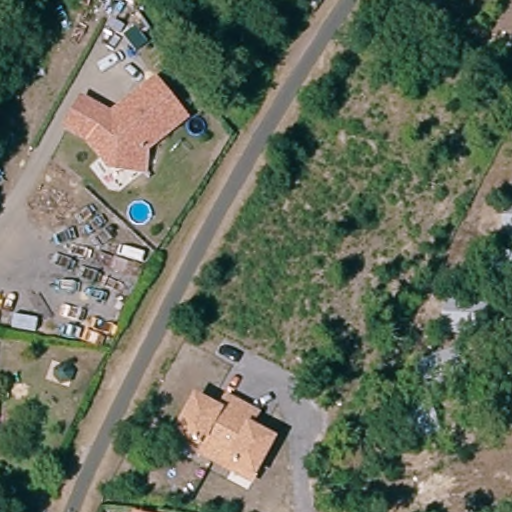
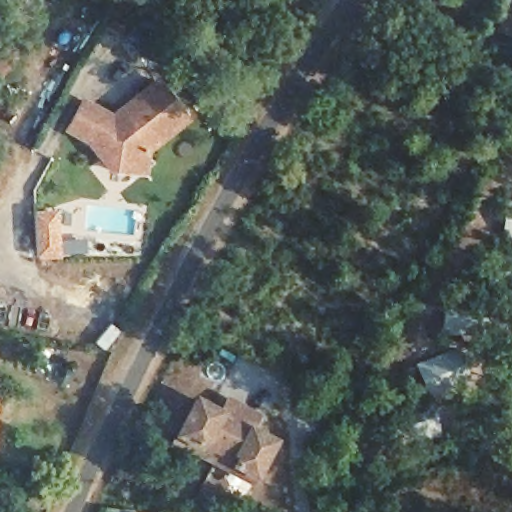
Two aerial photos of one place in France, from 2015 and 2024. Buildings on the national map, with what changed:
unchanged [(309,0),(311,0),(310,2),(309,0)]
unchanged [(512,43),(496,36),(509,4),(512,5),(512,43)]
unchanged [(118,165),(108,164),(82,128),(81,131),(65,122),(82,93),(111,110),(120,103),(157,76),(186,116),(144,146),(140,169),(118,165)]
unchanged [(507,208),(512,208),(512,232),(505,232),(507,208)]
new [(38,261),(35,212),(57,211),(60,258),(38,261)]
unchanged [(497,345),(512,343),(512,374),(501,375),(497,345)]
unchanged [(469,377),(426,392),(420,370),(461,355),(469,377)]
unchanged [(221,407),(226,396),(262,414),(256,426),(278,438),(257,478),(252,485),(194,453),(197,447),(172,434),(195,393),(221,407)]
unchanged [(437,428),(396,440),(392,417),(432,407),(437,428)]

